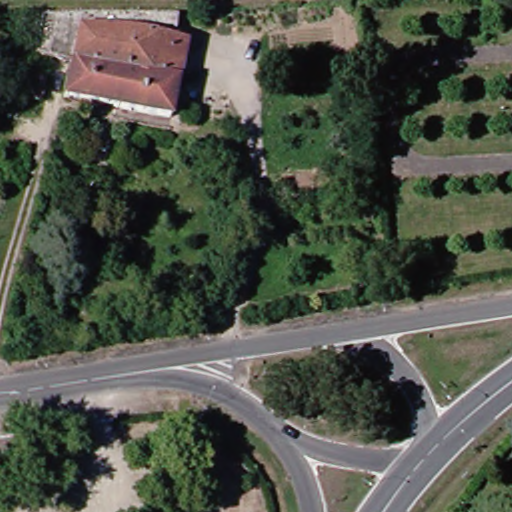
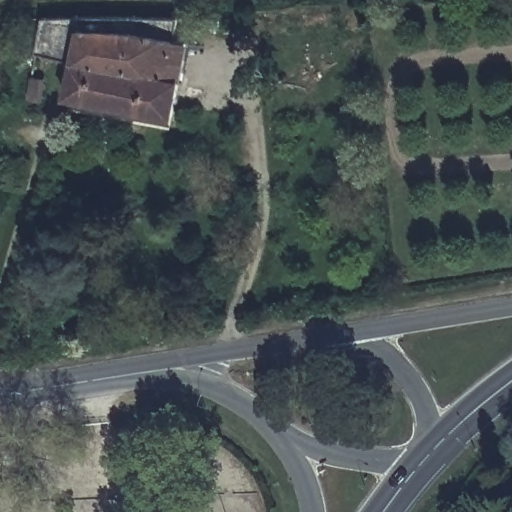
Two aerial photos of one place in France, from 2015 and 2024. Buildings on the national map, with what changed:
unchanged [(44,54),(50,18),(181,14),(175,40),(186,43),(204,46),(202,53),(192,51),(186,73),(180,72),(171,116),(67,95),(74,60),(44,54)]
unchanged [(40,76),(55,80),(50,101),(35,97),(40,76)]

